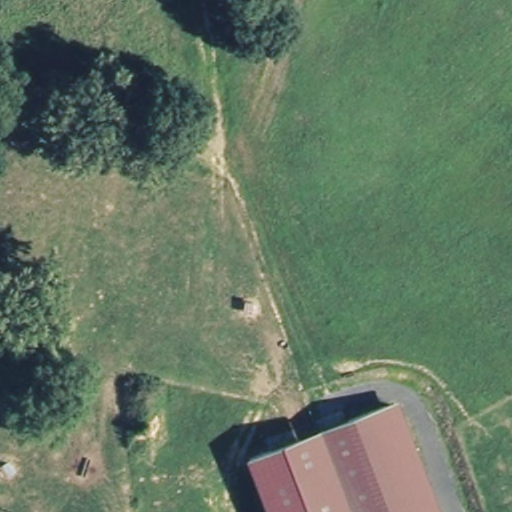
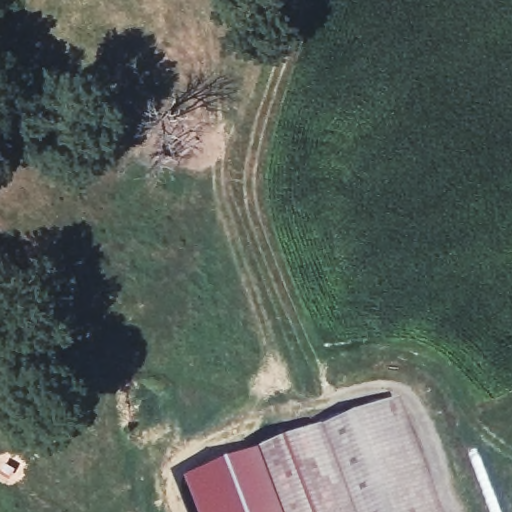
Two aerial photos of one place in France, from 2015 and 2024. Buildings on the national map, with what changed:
unchanged [(435,512),(424,512),(384,408),(393,405),(435,512)]
unchanged [(424,512),(272,512),(251,458),(384,408),(424,512)]
new [(194,512),(183,483),(251,458),(272,512),(194,512)]

